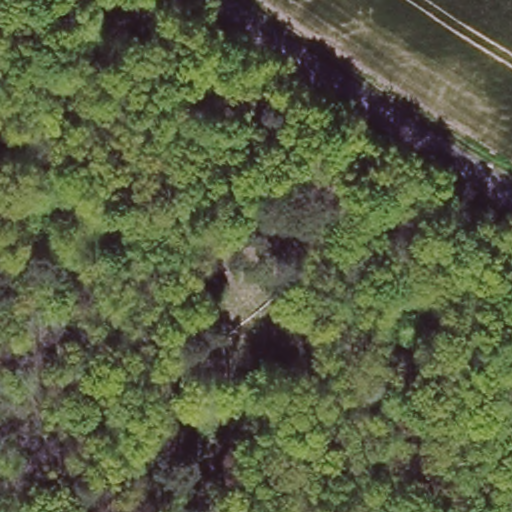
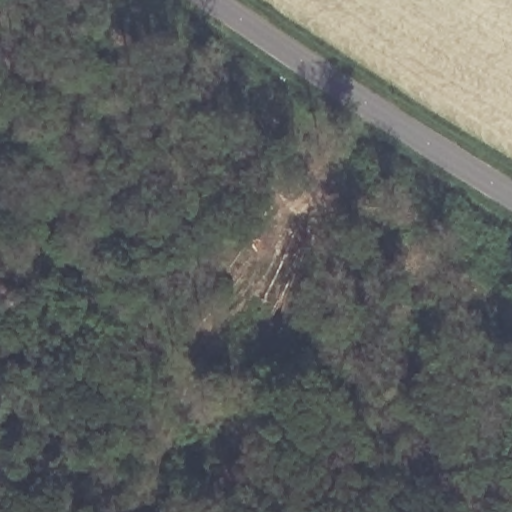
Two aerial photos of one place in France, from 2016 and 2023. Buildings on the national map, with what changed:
unchanged [(266,234),(262,246),(253,242),(269,202),(278,206),(275,214),(286,218),(277,238),(266,234)]
unchanged [(299,341),(293,359),(248,342),(239,366),(223,360),(238,321),(299,341)]

